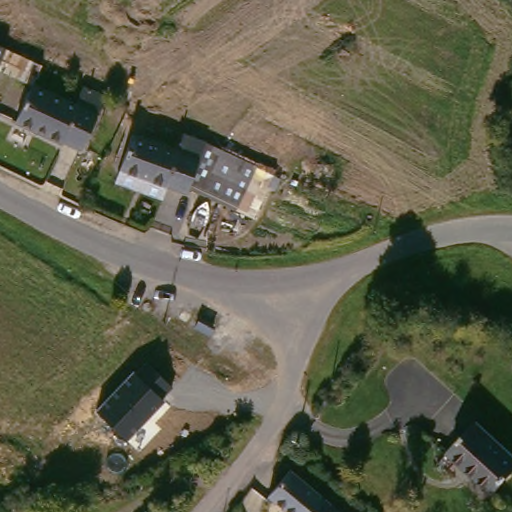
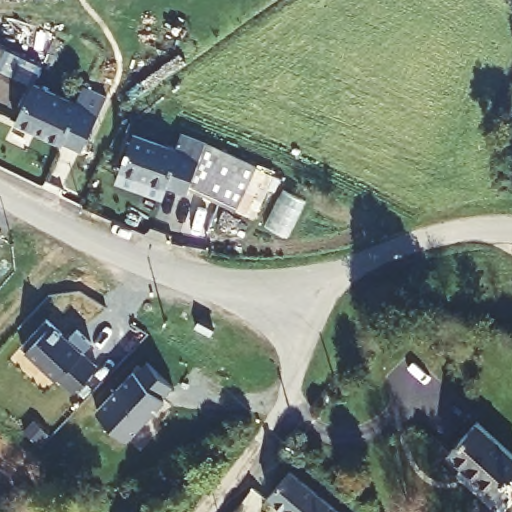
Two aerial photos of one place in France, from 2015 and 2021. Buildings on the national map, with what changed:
unchanged [(5,51),(0,61),(0,49),(5,51)]
unchanged [(89,92),(104,100),(95,117),(79,153),(62,146),(59,151),(10,129),(32,89),(81,111),(89,92)]
unchanged [(111,182),(117,170),(137,132),(182,152),(192,130),(212,139),(203,161),(191,189),(188,196),(169,186),(167,192),(164,191),(159,203),(111,182)]
unchanged [(267,163),(245,213),(191,189),(203,161),(212,139),(267,163)]
new [(47,320),(52,324),(70,339),(77,332),(91,344),(82,353),(97,367),(72,393),(57,378),(56,379),(25,350),(22,346),(47,320)]
unchanged [(133,371),(141,377),(152,365),(174,384),(162,397),(167,402),(127,441),(95,410),(133,371)]
unchanged [(478,422),(512,454),(512,474),(492,495),(446,455),(478,422)]
unchanged [(277,465),(332,512),(281,512),(256,490),(277,465)]

